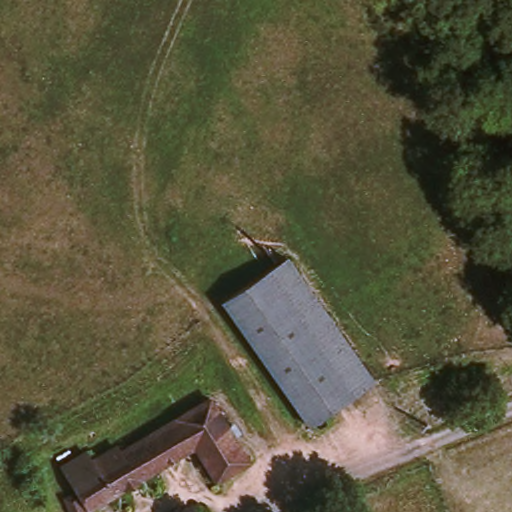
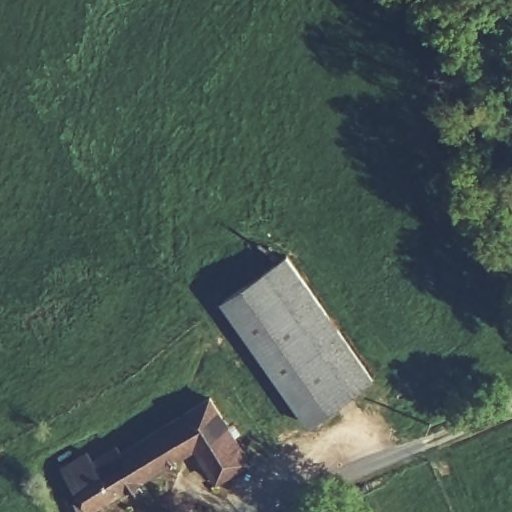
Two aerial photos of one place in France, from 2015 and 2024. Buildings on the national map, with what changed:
unchanged [(309,424),(224,301),(287,256),(336,324),(373,377),(358,389),(309,424)]
unchanged [(125,454),(214,400),(253,462),(219,482),(199,451),(99,510),(70,466),(91,453),(98,460),(119,447),(125,454)]
unchanged [(83,493),(91,512),(75,512),(70,499),(83,493)]

